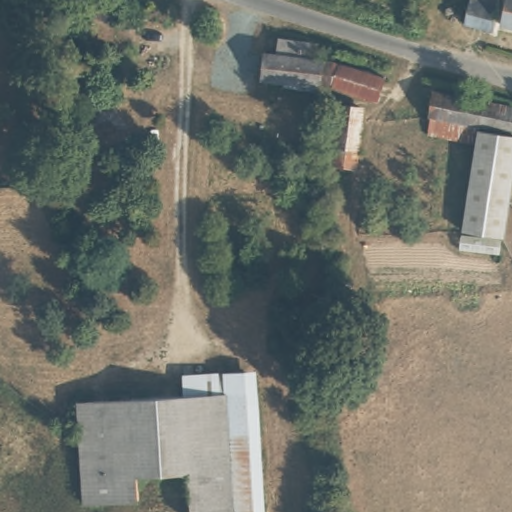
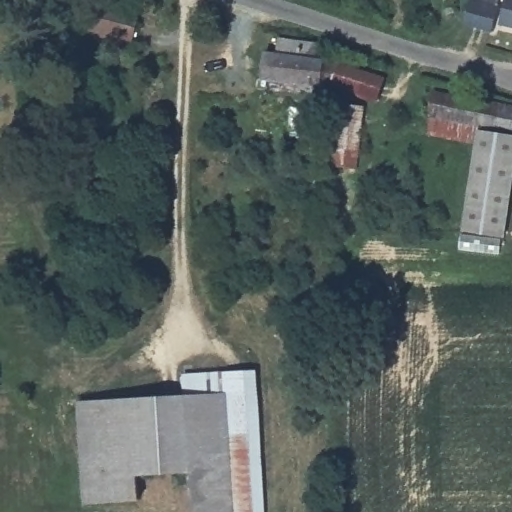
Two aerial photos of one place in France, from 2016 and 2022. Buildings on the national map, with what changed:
unchanged [(460,24),(465,0),(497,0),(490,31),(460,24)]
unchanged [(512,0),(512,28),(496,24),(503,0),(512,0)]
unchanged [(85,5),(135,15),(129,43),(78,30),(85,5)]
unchanged [(258,79),(261,51),(277,52),(280,38),(315,41),(315,57),(320,58),(318,86),(258,79)]
unchanged [(337,58),(383,72),(376,102),(327,87),(318,86),(320,58),(337,58)]
unchanged [(512,103),(512,129),(428,113),(433,87),(512,103)]
unchanged [(355,169),(334,166),(342,106),(363,109),(355,169)]
unchanged [(512,132),(512,178),(503,232),(465,225),(481,126),(512,132)]
unchanged [(252,370),(267,507),(239,511),(223,386),(179,391),(180,375),(252,370)]
unchanged [(179,391),(223,386),(239,511),(231,512),(195,512),(190,467),(139,472),(141,497),(89,502),(79,402),(179,391)]

